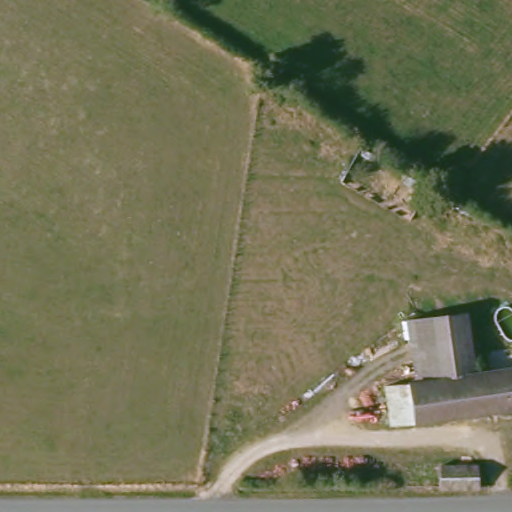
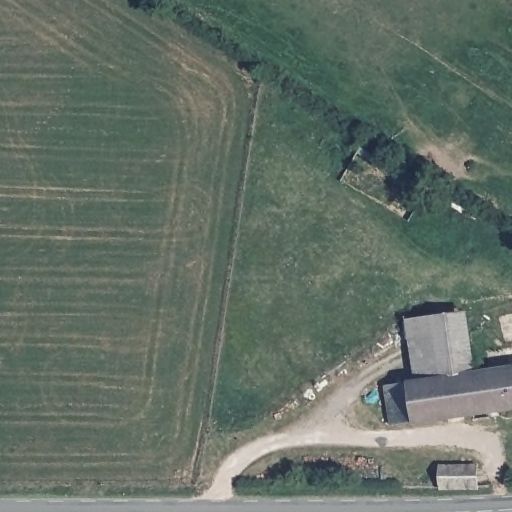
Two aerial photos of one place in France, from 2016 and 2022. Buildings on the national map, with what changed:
unchanged [(429,378),(422,317),(462,311),(470,372),(429,378)]
unchanged [(386,423),(382,384),(429,378),(470,372),(512,367),(512,407),(386,423)]
unchanged [(440,466),(475,464),(477,485),(442,486),(440,466)]

